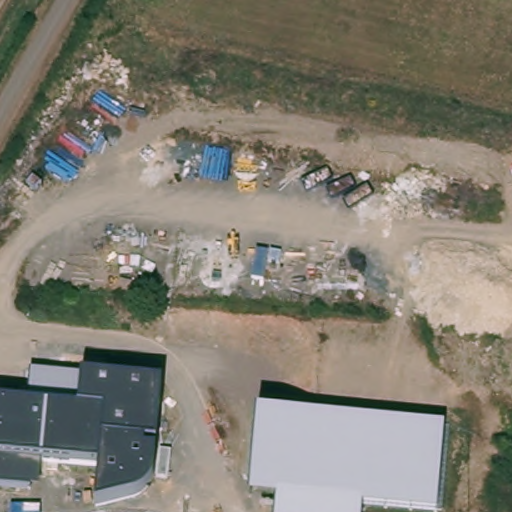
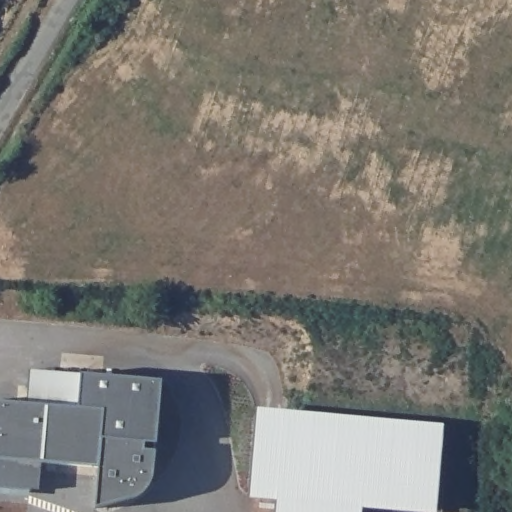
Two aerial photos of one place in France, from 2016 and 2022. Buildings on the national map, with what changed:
unchanged [(83,404),(86,369),(166,377),(161,441),(151,440),(150,448),(160,449),(157,471),(153,480),(146,488),(96,507),(101,465),(33,459),(31,491),(0,488),(0,398),(83,404)]
unchanged [(30,372),(85,376),(83,404),(27,400),(30,372)]
unchanged [(250,498),(257,408),(445,424),(437,512),(399,512),(362,509),(362,512),(275,512),(276,500),(250,498)]

